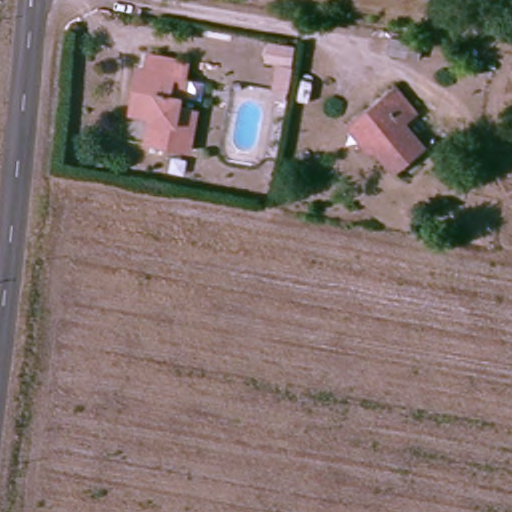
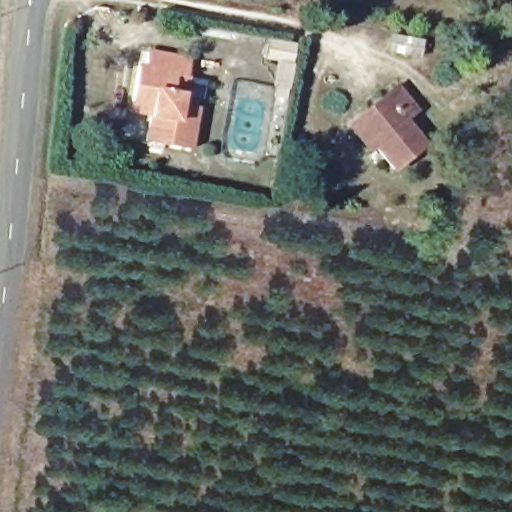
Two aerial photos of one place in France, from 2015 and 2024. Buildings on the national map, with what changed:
unchanged [(190,75),(206,78),(199,147),(144,140),(147,113),(132,111),(137,60),(145,61),(147,47),(190,55),(190,75)]
unchanged [(356,120),(391,95),(407,116),(400,122),(418,150),(390,172),(356,120)]

